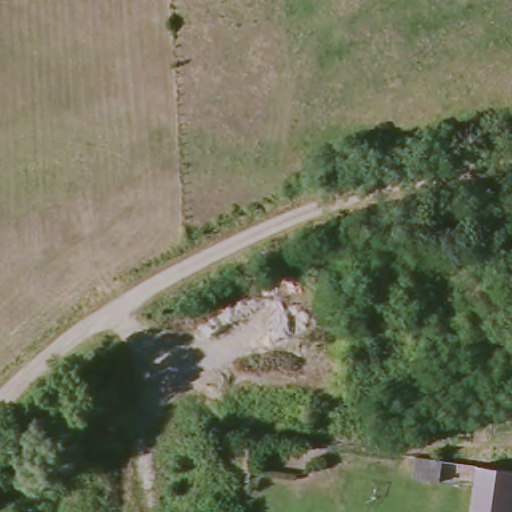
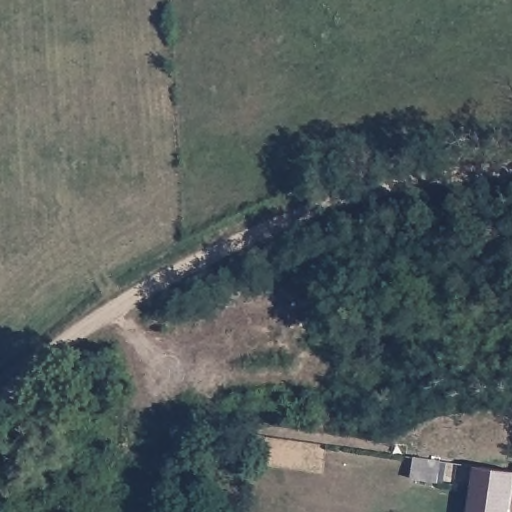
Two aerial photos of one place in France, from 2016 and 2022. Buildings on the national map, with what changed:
unchanged [(470,471),(510,477),(505,512),(464,512),(470,471)]

